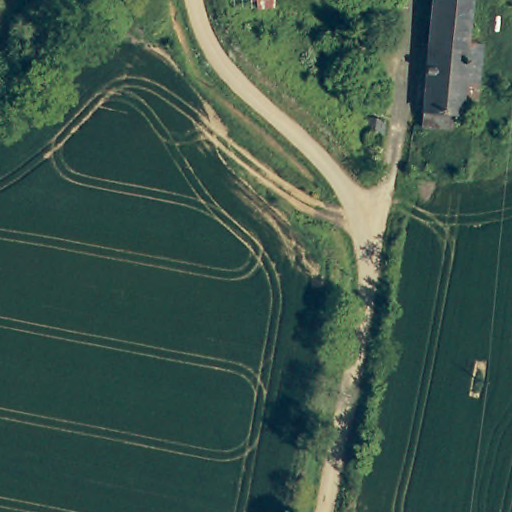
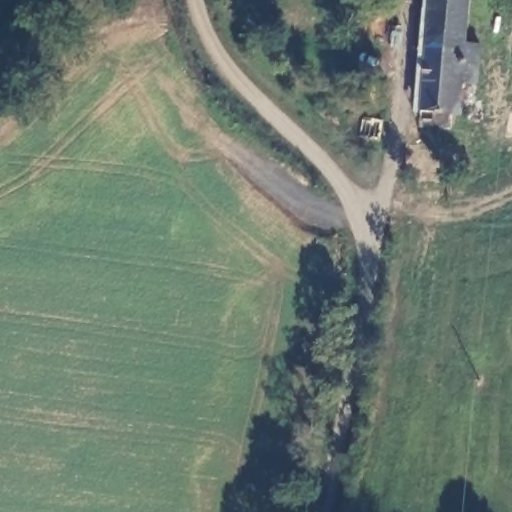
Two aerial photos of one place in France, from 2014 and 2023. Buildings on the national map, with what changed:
unchanged [(234,9),(233,0),(275,0),(275,8),(234,9)]
unchanged [(484,46),(479,111),(479,116),(456,116),(454,125),(424,128),(434,0),(473,0),(470,46),(484,46)]
unchanged [(508,134),(512,117),(512,134),(508,134)]
unchanged [(384,141),(380,141),(378,153),(366,150),(367,139),(364,139),(367,118),(387,121),(384,141)]

